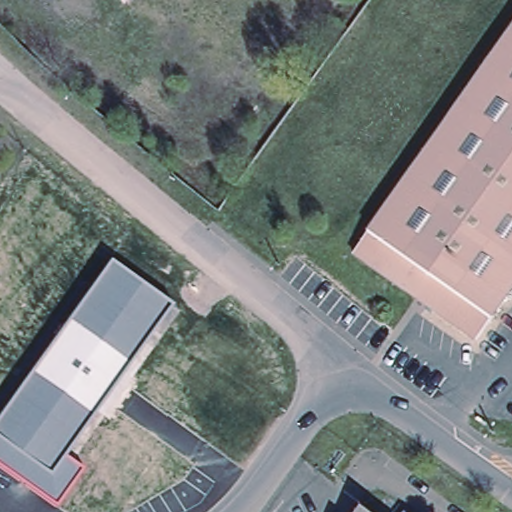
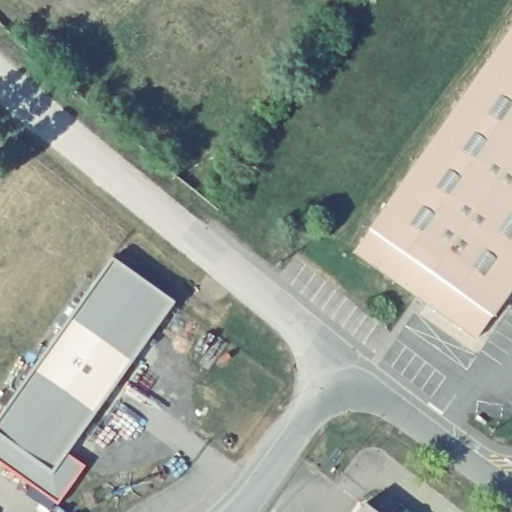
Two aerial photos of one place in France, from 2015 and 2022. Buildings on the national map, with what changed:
unchanged [(512,29),(512,288),(475,342),(350,255),(512,29)]
unchanged [(16,391),(112,261),(174,307),(147,344),(100,409),(67,455),(85,468),(57,506),(0,464),(0,413),(2,411),(0,409),(0,386),(3,382),(16,391)]
unchanged [(133,380),(138,383),(113,418),(100,409),(147,344),(155,350),(133,380)]
unchanged [(367,512),(358,512),(362,508),(367,512)]

